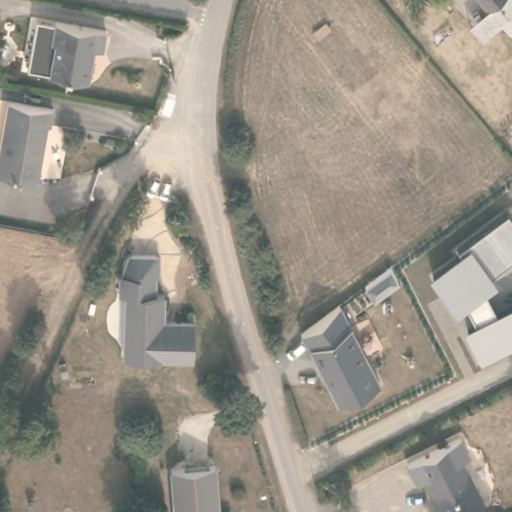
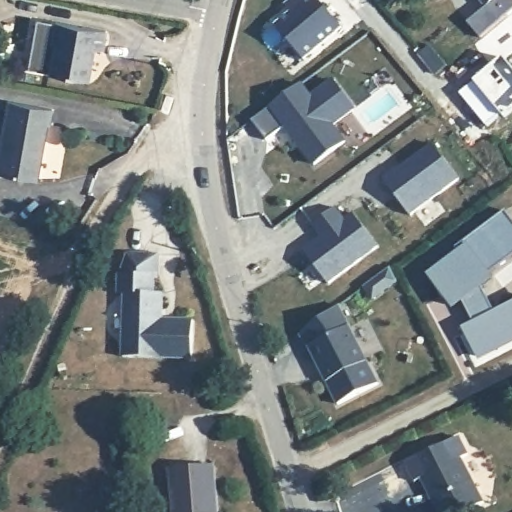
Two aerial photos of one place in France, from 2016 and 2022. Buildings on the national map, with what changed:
unchanged [(306,58),(277,25),(292,13),(282,3),(287,0),(318,0),(340,29),(306,58)]
unchanged [(510,16),(497,1),(488,8),(481,0),(512,0),(512,14),(510,16)]
unchanged [(510,16),(512,14),(512,32),(510,33),(501,23),(482,39),(470,24),(488,8),(497,1),(510,16)]
unchanged [(26,67),(35,15),(64,21),(59,38),(61,40),(55,71),(26,67)]
unchanged [(101,47),(90,48),(90,60),(85,79),(55,71),(61,40),(59,38),(64,21),(105,29),(101,47)]
new [(301,84),(311,97),(333,80),(355,108),(332,125),(345,142),(315,164),(300,145),(302,137),(291,122),(267,140),(252,120),(301,84)]
unchanged [(56,119),(52,119),(40,177),(0,170),(11,97),(57,104),(56,119)]
new [(432,144),(457,180),(410,216),(385,179),(432,144)]
new [(320,236),(311,226),(336,208),(345,219),(353,212),(376,247),(328,283),(305,249),(320,236)]
unchanged [(512,219),(512,261),(492,275),(496,280),(483,289),(495,311),(512,303),(512,347),(480,363),(462,329),(475,322),(465,302),(455,310),(428,275),(459,251),(456,248),(506,211),(512,219)]
unchanged [(150,294),(159,294),(159,310),(159,320),(190,321),(189,359),(136,357),(119,357),(120,294),(115,294),(115,274),(141,275),(150,275),(150,294)]
unchanged [(310,346),(300,334),(339,305),(379,383),(339,404),(327,380),(320,367),(310,346)]
unchanged [(462,457),(455,462),(481,507),(472,512),(432,512),(418,483),(410,485),(400,469),(452,441),(462,457)]
unchanged [(216,465),(220,512),(173,512),(170,471),(216,465)]

